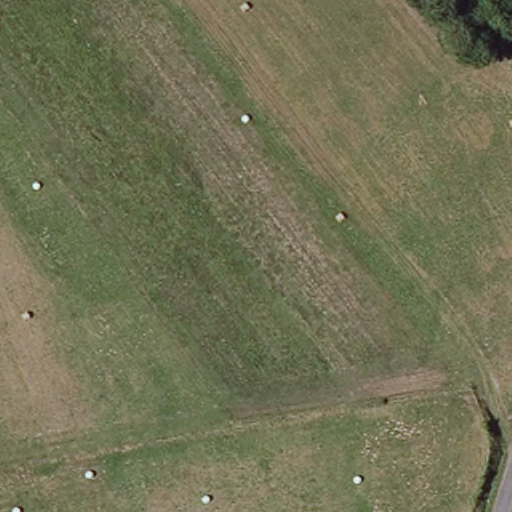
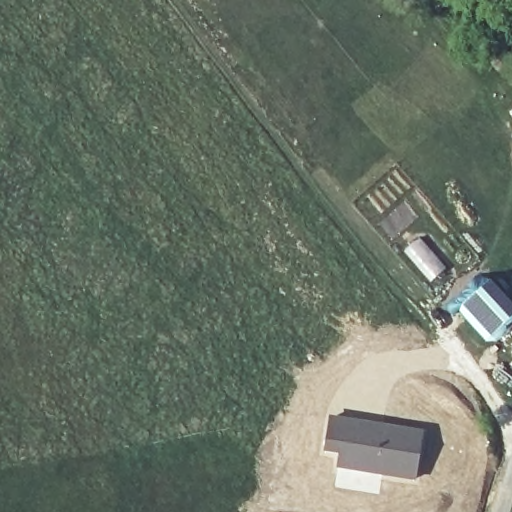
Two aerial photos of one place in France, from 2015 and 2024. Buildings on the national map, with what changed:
new [(512,306),(512,321),(490,342),(459,310),(489,280),(512,306)]
new [(336,456),(322,453),(328,416),(425,430),(416,482),(381,477),(379,494),(334,487),(335,468),(336,456)]

